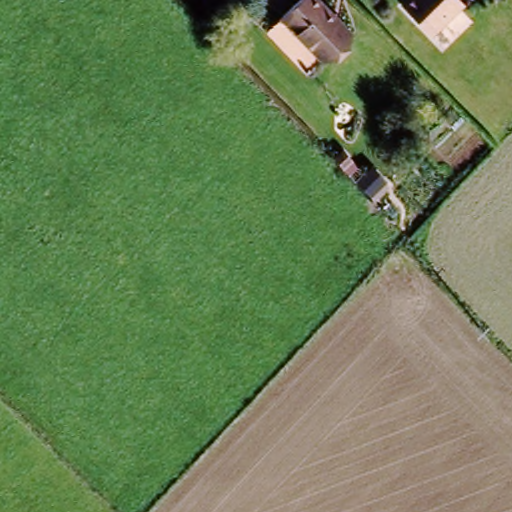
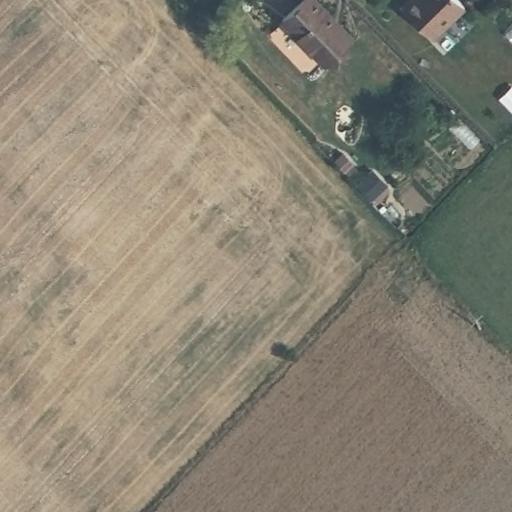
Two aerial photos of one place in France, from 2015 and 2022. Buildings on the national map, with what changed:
unchanged [(326,64),(286,25),(312,0),(315,0),(353,38),(326,64)]
unchanged [(401,6),(406,0),(457,0),(463,5),(433,36),(401,6)]

